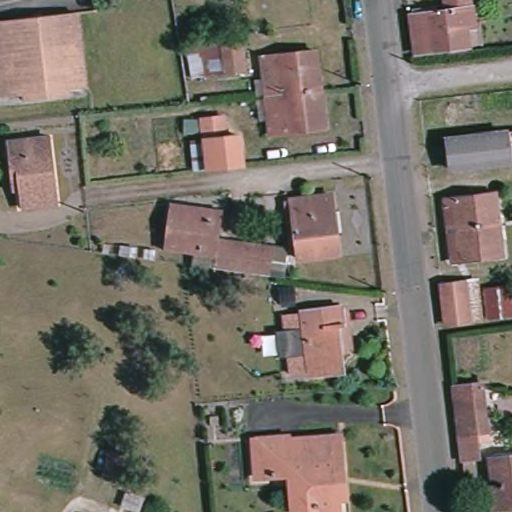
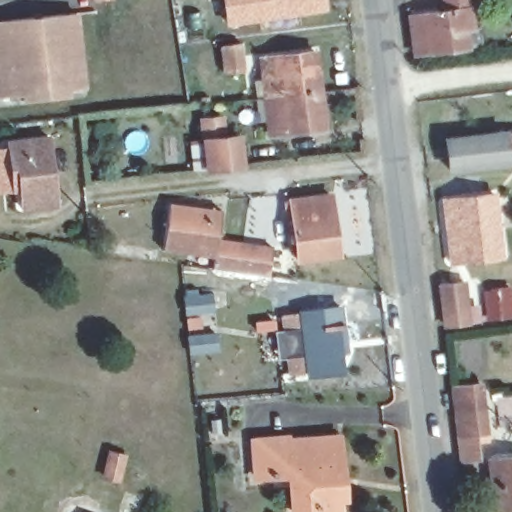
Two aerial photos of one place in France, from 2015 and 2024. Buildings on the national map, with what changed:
new [(274,20),(226,26),(221,0),(327,0),(328,11),(274,20)]
unchanged [(416,52),(412,15),(443,11),(442,0),(469,0),(474,45),(416,52)]
unchanged [(72,15),(76,89),(61,91),(62,98),(22,100),(22,94),(0,95),(0,20),(72,15)]
unchanged [(226,41),(228,65),(214,66),(212,42),(226,41)]
unchanged [(272,93),(253,95),(250,57),(275,55),(307,52),(310,89),(272,93)]
unchanged [(315,127),(258,136),(255,101),(272,98),(272,93),(310,89),(315,127)]
unchanged [(236,169),(220,171),(202,172),(196,120),(215,119),(217,139),(232,137),(236,169)]
unchanged [(444,153),(442,137),(500,131),(503,161),(496,162),(446,167),(444,153)]
unchanged [(41,137),(51,204),(19,207),(17,187),(9,189),(2,142),(41,137)]
unchanged [(460,260),(459,255),(450,255),(444,204),(453,202),(453,198),(494,192),(501,254),(460,260)]
unchanged [(323,201),(332,259),(290,264),(282,206),(323,201)]
unchanged [(207,269),(210,252),(157,246),(161,207),(204,211),(204,219),(214,221),(212,241),(266,247),(262,277),(207,269)]
unchanged [(477,288),(512,286),(512,320),(442,327),(432,286),(475,277),(477,288)]
unchanged [(340,332),(331,333),(334,377),(302,380),(302,376),(284,377),(282,316),(338,312),(340,332)]
unchanged [(454,389),(480,387),(481,400),(483,432),(472,433),(476,457),(458,460),(456,436),(460,436),(454,389)]
unchanged [(297,512),(292,474),(277,475),(277,486),(261,487),(257,451),(288,446),(317,443),(317,447),(342,445),(346,477),(348,499),(341,501),(343,512),(297,512)]
unchanged [(130,456),(122,481),(107,476),(116,451),(130,456)]
unchanged [(491,462),(490,457),(502,456),(502,461),(512,460),(512,509),(493,512),(487,462),(491,462)]

